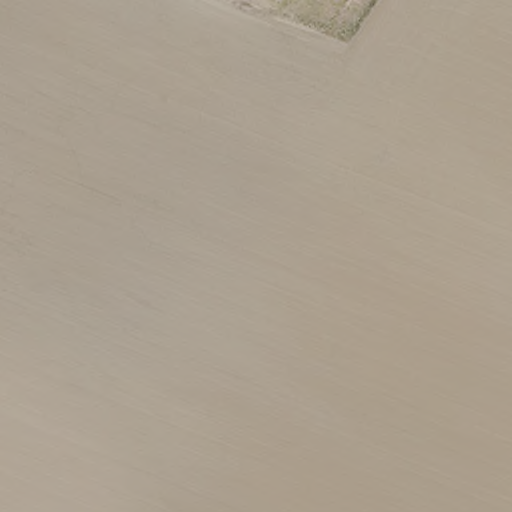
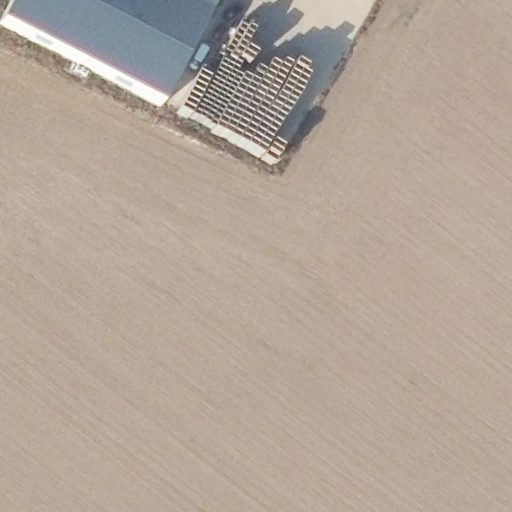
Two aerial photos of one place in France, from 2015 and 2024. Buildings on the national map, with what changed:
new [(0,24),(0,21),(11,0),(215,0),(160,106),(0,24)]

